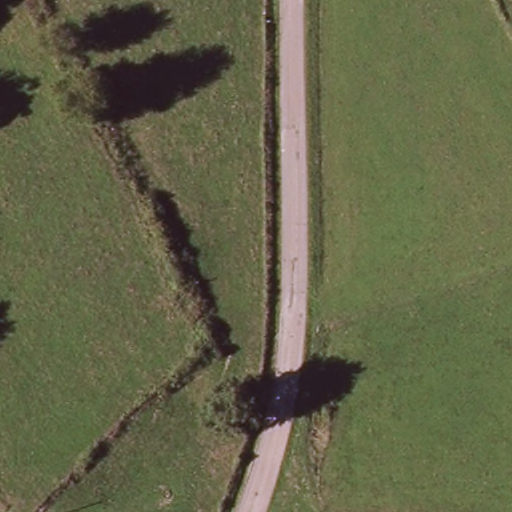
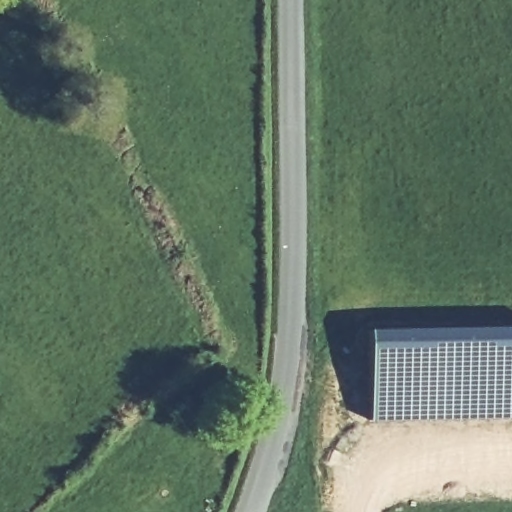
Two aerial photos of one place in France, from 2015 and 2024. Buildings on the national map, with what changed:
new [(512,329),(512,419),(370,423),(367,333),(512,329)]

